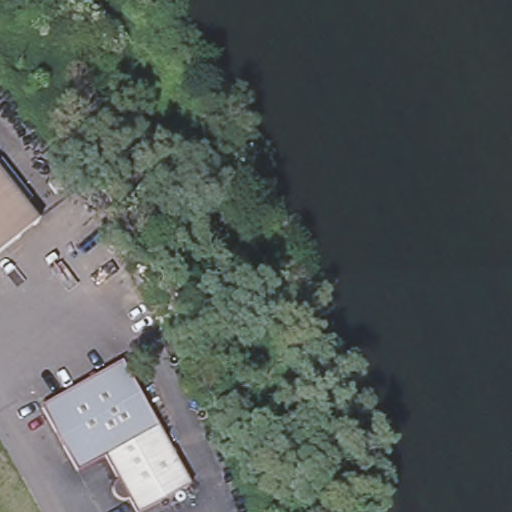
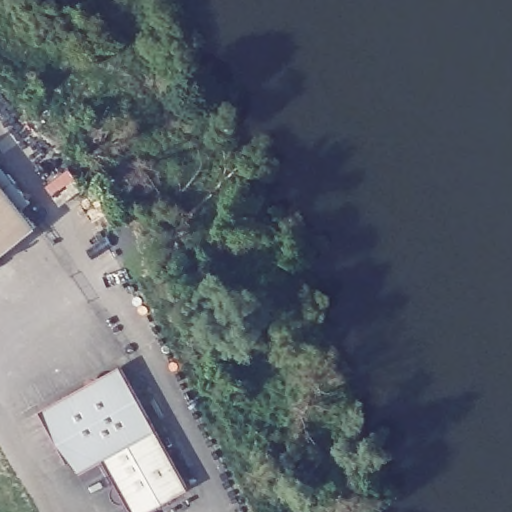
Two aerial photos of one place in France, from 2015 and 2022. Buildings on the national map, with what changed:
unchanged [(8,194),(16,189),(30,206),(22,212),(36,229),(0,257),(0,184),(8,194)]
unchanged [(73,473),(36,408),(119,364),(154,427),(102,457),(73,473)]
unchanged [(124,496),(118,498),(114,489),(117,487),(102,457),(154,427),(182,477),(187,486),(140,512),(133,512),(129,504),(124,496)]

